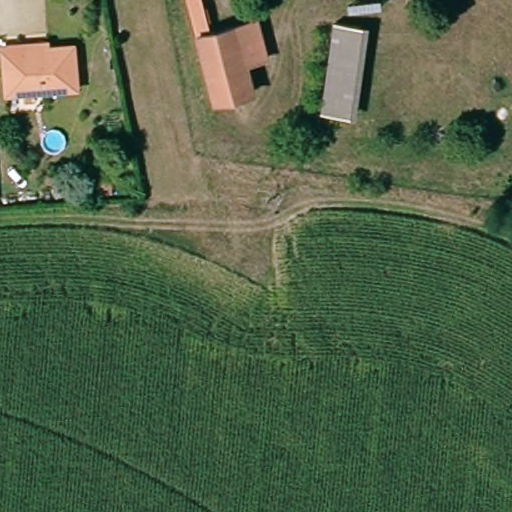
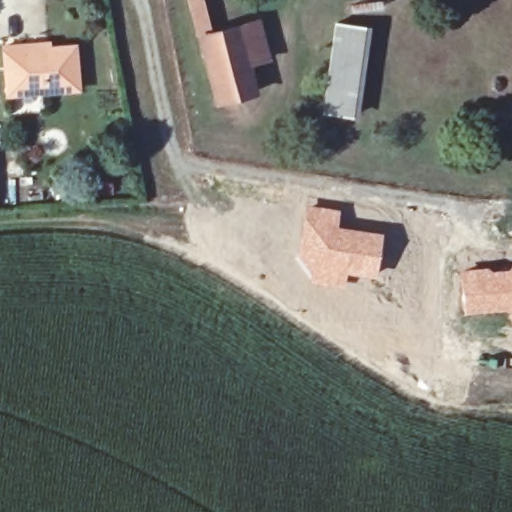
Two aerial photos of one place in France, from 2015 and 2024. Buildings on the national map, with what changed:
unchanged [(198,36),(188,0),(201,0),(210,32),(238,26),(257,22),(266,59),(247,64),(254,92),(214,102),(198,36)]
unchanged [(349,117),(322,114),(335,22),(361,27),(349,117)]
unchanged [(77,91),(7,95),(4,45),(21,44),(48,42),(49,48),(74,47),(77,91)]
demolished [(231,198),(237,257),(221,257),(218,250),(203,251),(197,201),(231,198)]
new [(304,204),(340,209),(337,226),(382,232),(374,277),(346,273),(344,288),(311,282),(309,276),(297,258),(304,204)]
new [(512,324),(508,324),(506,312),(464,317),(459,269),(512,264),(512,324)]

